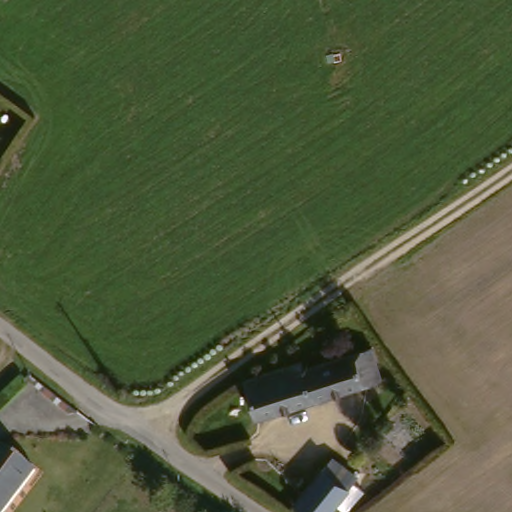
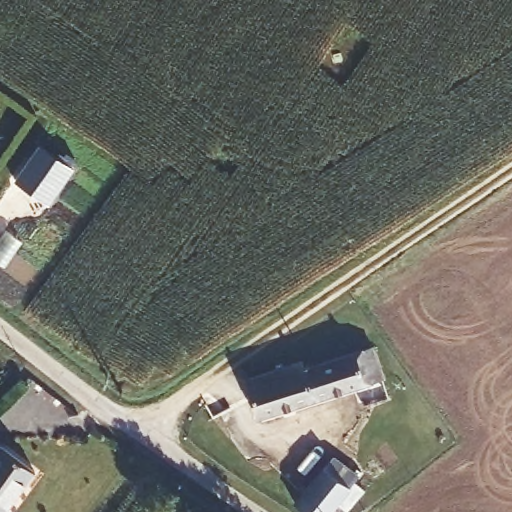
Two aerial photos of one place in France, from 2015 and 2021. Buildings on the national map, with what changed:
new [(40,145),(73,167),(48,204),(15,181),(40,145)]
unchanged [(308,359),(311,365),(377,342),(388,371),(263,412),(250,378),(251,377),(308,359)]
unchanged [(6,441),(41,468),(8,512),(0,512),(0,449),(6,441)]
unchanged [(301,503),(336,455),(360,475),(345,497),(332,512),(311,512),(301,503)]

